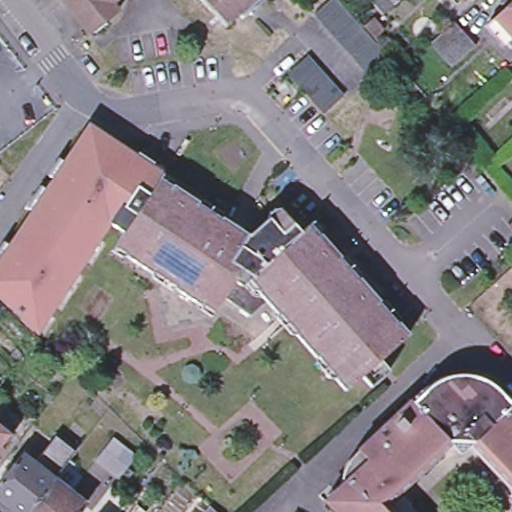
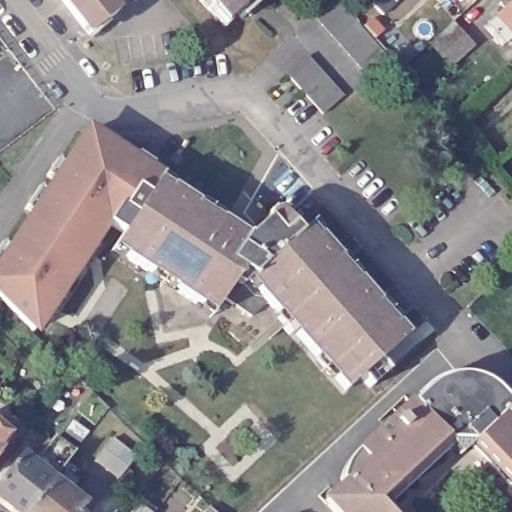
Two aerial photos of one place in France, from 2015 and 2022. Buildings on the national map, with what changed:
unchanged [(120,9),(115,16),(92,33),(66,0),(119,0),(115,3),(120,9)]
unchanged [(240,26),(237,22),(225,32),(212,17),(210,18),(199,6),(205,0),(264,0),(263,1),(265,3),(240,26)]
unchanged [(347,50),(337,40),(327,29),(320,21),(312,12),(325,0),(339,0),(342,3),(350,12),(359,22),(368,31),(376,40),(387,52),(383,56),(367,69),(365,71),(354,58),(347,50)]
unchanged [(400,0),(398,1),(386,12),(375,0),(400,0)]
unchanged [(461,0),(463,0),(462,1),(461,0)]
unchanged [(498,23),(512,11),(512,46),(507,50),(490,31),(498,23)]
unchanged [(371,14),(382,27),(374,34),(362,22),(371,14)]
unchanged [(452,22),(475,47),(450,68),(428,45),(452,22)]
unchanged [(302,92),(293,83),(285,72),(305,56),(314,66),(323,76),(332,86),(340,96),(322,114),(312,102),(302,92)]
unchanged [(343,392),(335,382),(329,381),(315,365),(314,358),(295,337),(290,337),(282,328),(272,317),(273,312),(267,305),(252,317),(223,298),(210,318),(197,308),(198,306),(179,292),(172,292),(152,280),(150,276),(126,257),(119,258),(110,252),(123,234),(110,224),(108,226),(102,228),(87,252),(76,245),(70,253),(84,262),(72,280),(63,282),(56,293),(58,301),(45,320),(43,317),(32,333),(0,301),(0,247),(2,244),(10,248),(33,214),(25,209),(30,202),(37,192),(40,187),(47,192),(55,182),(47,177),(58,160),(65,165),(85,135),(85,134),(95,132),(103,137),(122,150),(120,152),(133,162),(138,154),(154,165),(150,172),(160,179),(165,171),(213,205),(210,209),(225,220),(248,237),(266,220),(270,217),(267,214),(272,211),(273,213),(277,210),(301,234),(313,223),(319,229),(320,237),(340,258),(345,261),(362,279),(362,286),(377,301),(383,302),(400,321),(397,325),(408,337),(378,363),(387,373),(370,388),(360,378),(343,392)]
unchanged [(437,383),(443,378),(447,383),(452,380),(457,376),(467,377),(469,382),(477,384),(480,377),(497,393),(502,388),(512,399),(512,461),(437,383)]
unchanged [(512,461),(512,496),(488,452),(483,452),(471,441),(460,452),(438,431),(392,477),(370,501),(380,512),(337,512),(327,502),(348,482),(342,476),(348,457),(423,386),(427,390),(437,383),(512,461)]
unchanged [(12,437),(3,448),(0,453),(0,428),(3,431),(12,437)]
unchanged [(0,499),(0,479),(22,452),(33,461),(55,432),(75,449),(64,464),(54,477),(86,502),(78,512),(16,512),(0,499)]
unchanged [(113,439),(137,458),(119,480),(95,461),(113,439)]
unchanged [(370,501),(392,477),(405,487),(392,499),(397,505),(402,512),(380,512),(370,501)]
unchanged [(112,488),(127,501),(117,512),(102,501),(112,488)]
unchanged [(210,507),(214,512),(205,512),(210,507)]

